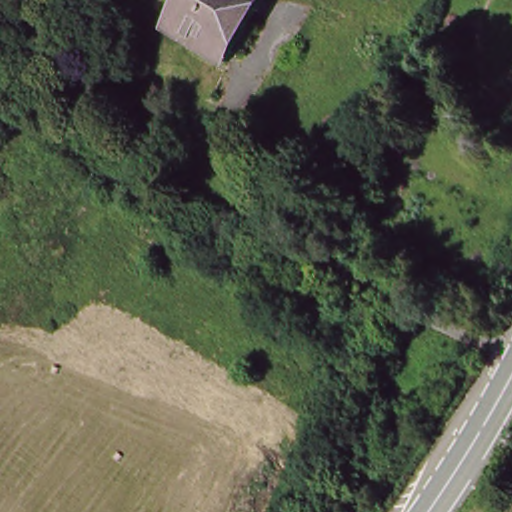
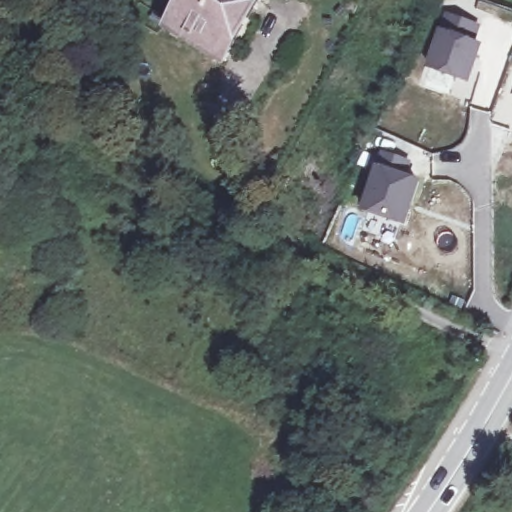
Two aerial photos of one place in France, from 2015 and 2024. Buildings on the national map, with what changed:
unchanged [(232,52),(225,64),(194,45),(196,41),(171,26),(187,0),(264,0),(250,22),(232,52)]
new [(471,84),(428,69),(442,30),(448,14),(482,27),(477,44),(485,46),(471,84)]
new [(404,223),(367,209),(385,155),(410,164),(406,178),(419,183),(404,223)]

